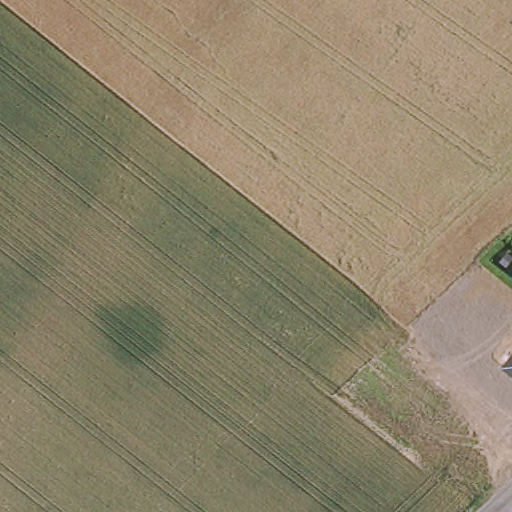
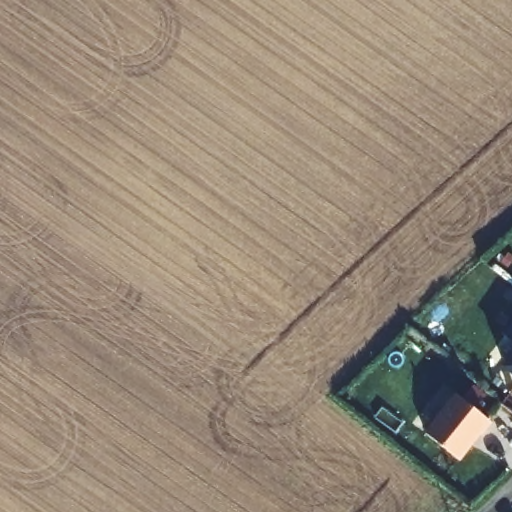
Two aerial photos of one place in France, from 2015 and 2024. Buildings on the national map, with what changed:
unchanged [(512,355),(512,375),(502,368),(512,355)]
new [(460,461),(424,432),(455,393),(492,422),(460,461)]

